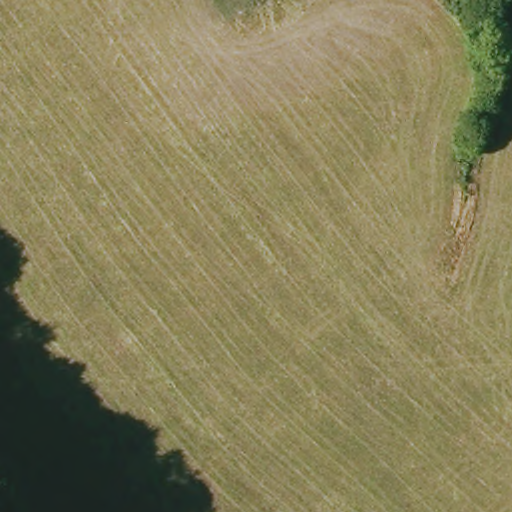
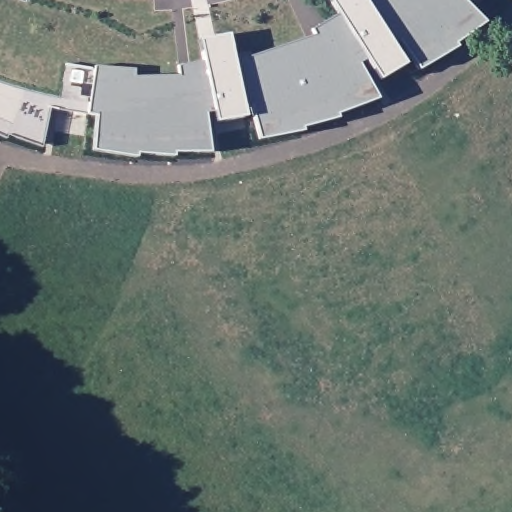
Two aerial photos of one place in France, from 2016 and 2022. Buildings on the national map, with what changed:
new [(1,81),(20,87),(43,93),(73,100),(87,102),(93,65),(134,68),(135,76),(178,74),(177,66),(202,60),(201,51),(231,46),(233,55),(247,52),(250,56),(314,34),(313,28),(337,14),(330,2),(330,0),(459,0),(480,24),(453,43),(453,47),(418,68),(399,40),(355,64),(373,99),(332,114),(333,117),(298,126),(299,130),(259,137),(251,102),(202,111),(206,150),(171,150),(170,153),(134,150),(133,154),(93,147),(97,112),(48,105),(40,142),(5,130),(4,134),(0,132),(0,80),(1,81)]
new [(231,46),(200,51),(198,39),(229,34),(231,46)]

